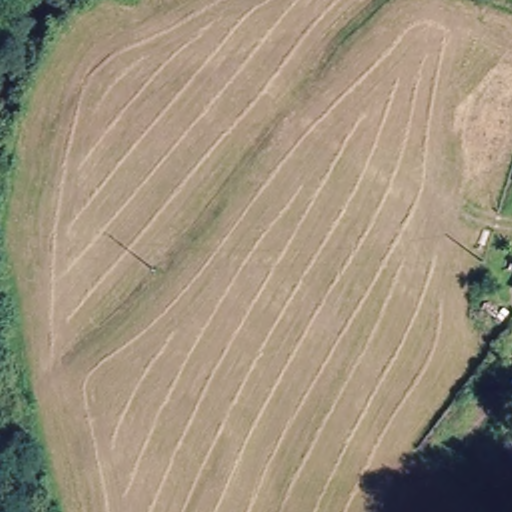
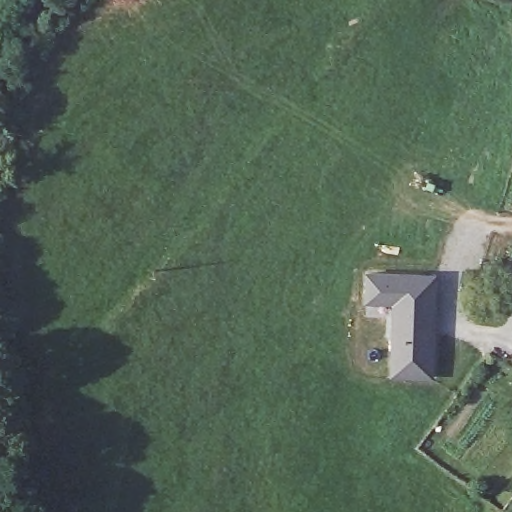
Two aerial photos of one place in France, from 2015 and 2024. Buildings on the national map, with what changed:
new [(365,270),(438,272),(438,322),(436,377),(390,376),(390,306),(364,306),(365,270)]

